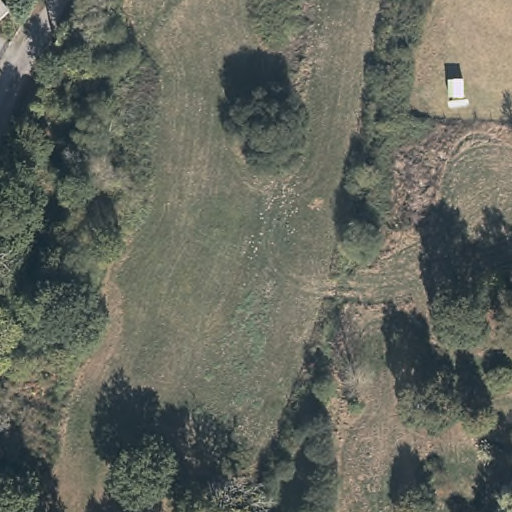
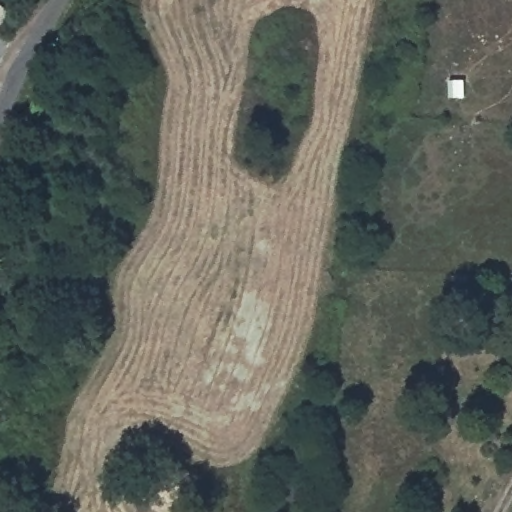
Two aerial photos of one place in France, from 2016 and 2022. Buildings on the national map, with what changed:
unchanged [(3,9),(0,12),(0,6),(3,9)]

